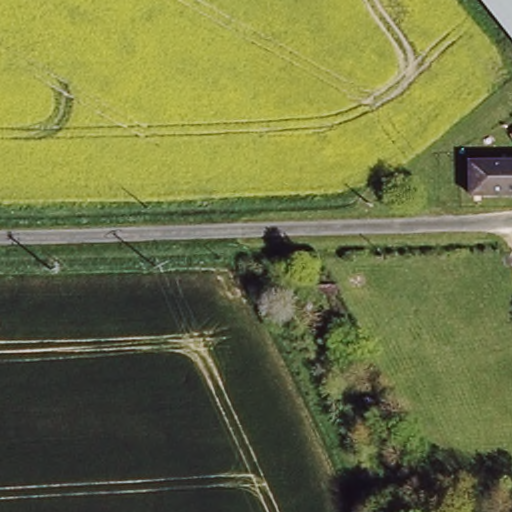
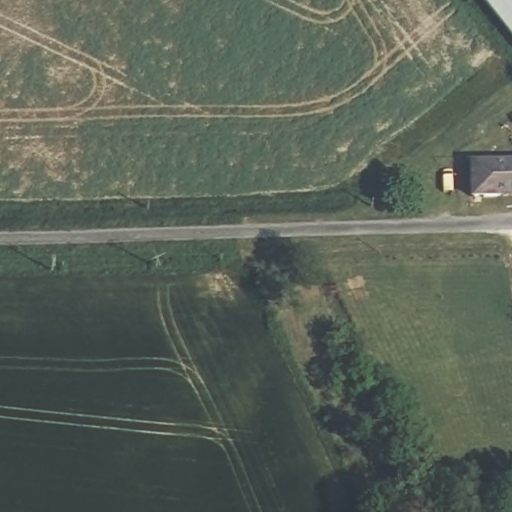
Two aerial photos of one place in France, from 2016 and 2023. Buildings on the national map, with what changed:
unchanged [(486,0),(512,0),(512,32),(486,0)]
unchanged [(476,156),(512,155),(512,189),(477,190),(476,156)]

